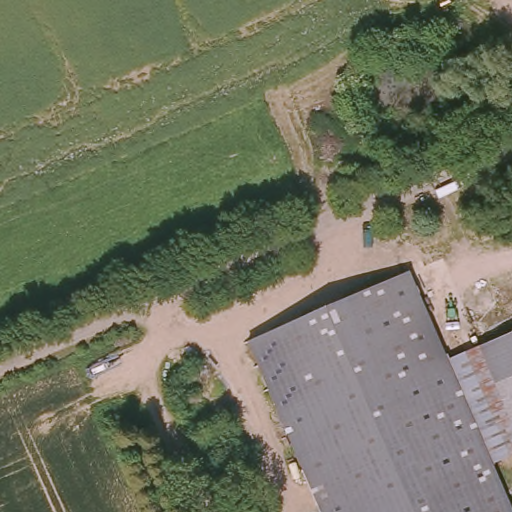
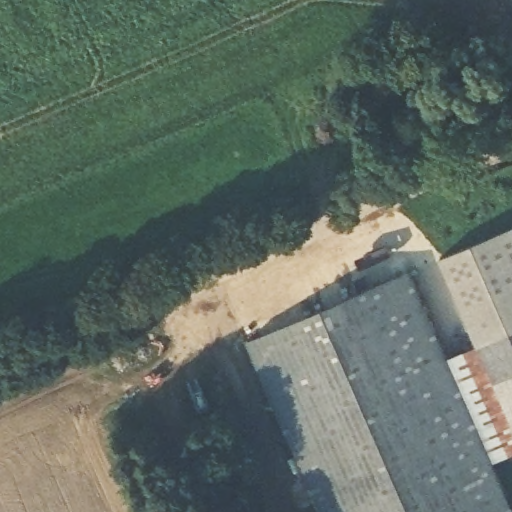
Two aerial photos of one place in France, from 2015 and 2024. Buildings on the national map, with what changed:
new [(482,343),(477,345),(442,260),(512,229),(512,411),(482,343)]
unchanged [(443,361),(489,461),(511,512),(322,512),(245,338),(402,271),(443,361)]
demolished [(512,331),(512,411),(482,343),(512,331)]
unchanged [(489,461),(443,361),(482,343),(512,411),(512,451),(489,461)]

